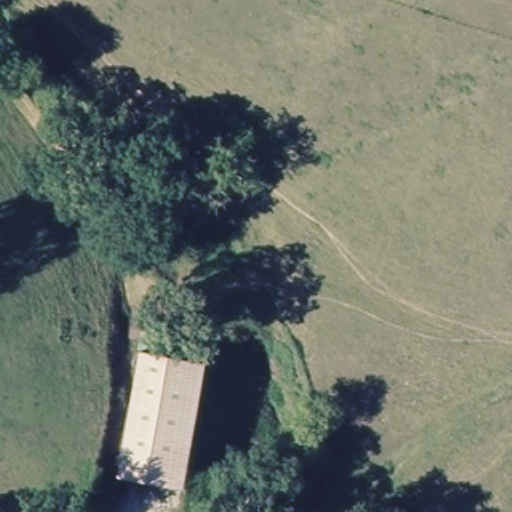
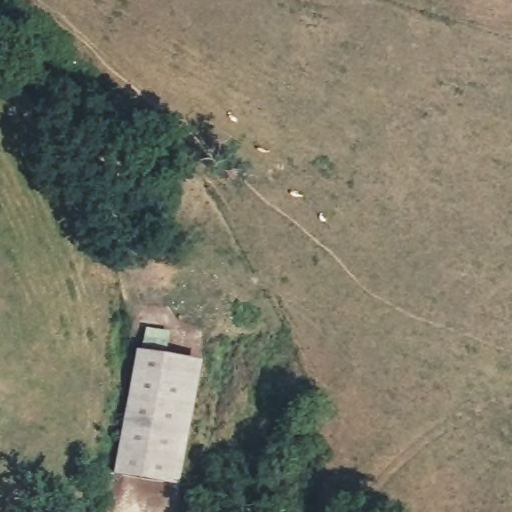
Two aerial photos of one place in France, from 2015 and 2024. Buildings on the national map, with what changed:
unchanged [(139,351),(179,358),(185,384),(169,484),(119,475),(139,351)]

